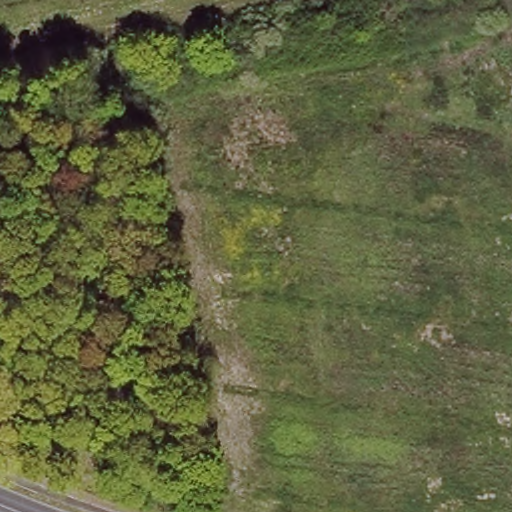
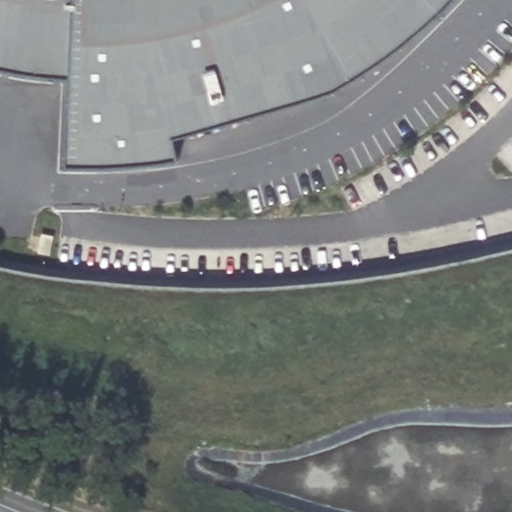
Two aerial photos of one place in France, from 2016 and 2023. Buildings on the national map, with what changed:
new [(326,92),(169,139),(172,160),(125,166),(59,167),(61,79),(9,75),(0,72),(0,0),(452,0),(410,35),(326,92)]

